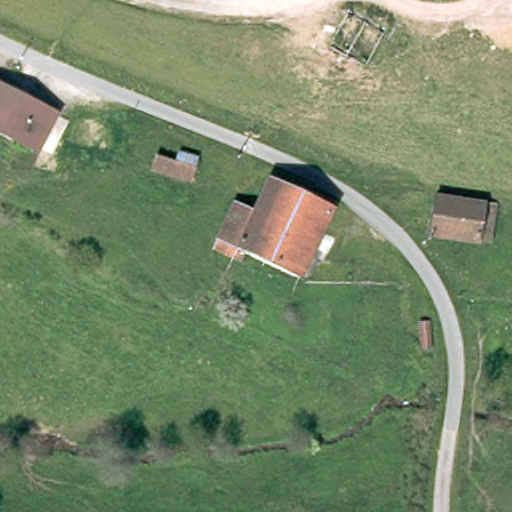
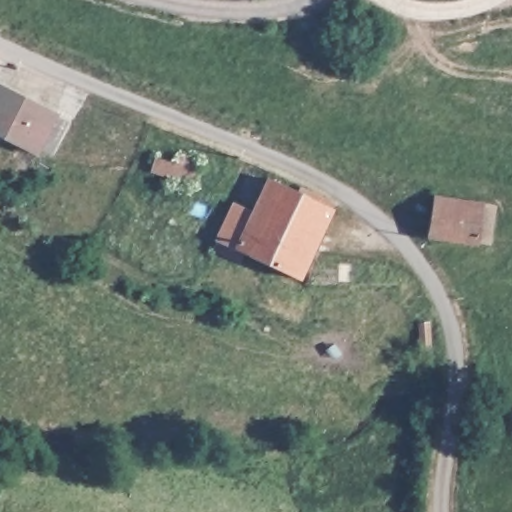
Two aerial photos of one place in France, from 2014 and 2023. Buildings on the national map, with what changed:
unchanged [(0,126),(0,76),(58,109),(38,146),(0,126)]
unchanged [(176,156),(179,146),(199,153),(193,177),(151,165),(155,151),(176,156)]
unchanged [(229,256),(211,247),(234,198),(253,208),(269,175),(331,206),(296,279),(242,252),(238,261),(229,256)]
unchanged [(483,198),(496,199),(495,204),(492,225),(489,239),(479,237),(477,244),(442,237),(428,234),(431,191),(483,198)]

